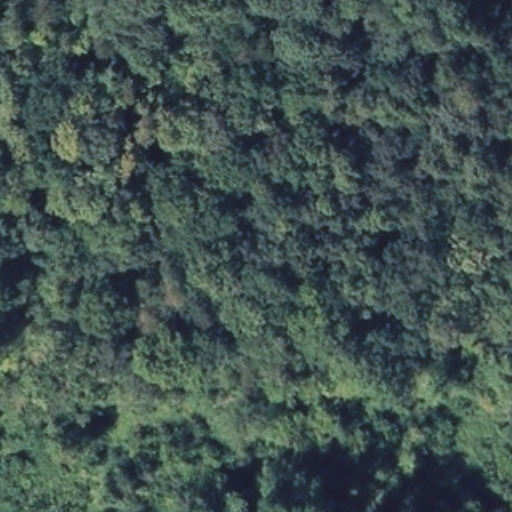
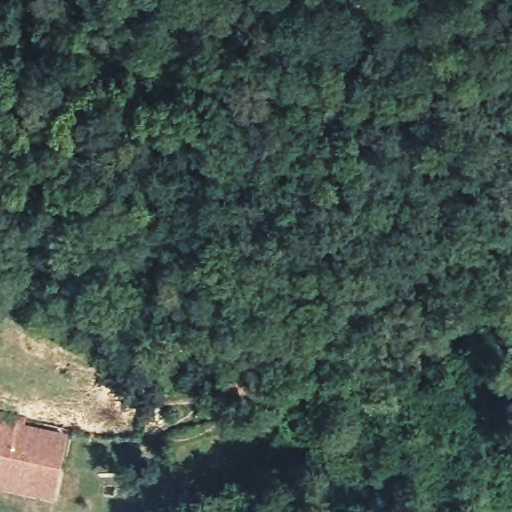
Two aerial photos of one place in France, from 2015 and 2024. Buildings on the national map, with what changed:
new [(0,411),(26,416),(24,426),(66,434),(53,498),(0,486),(0,411)]

